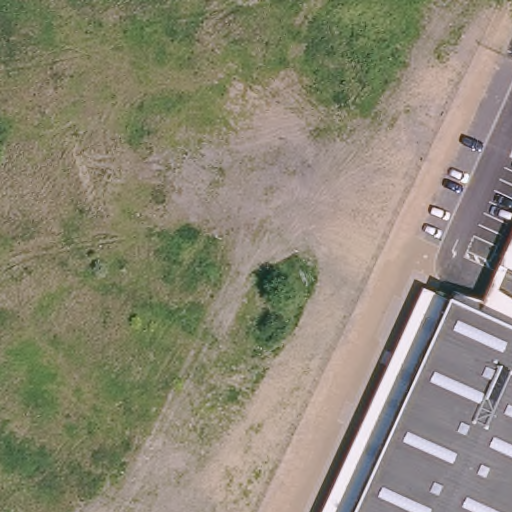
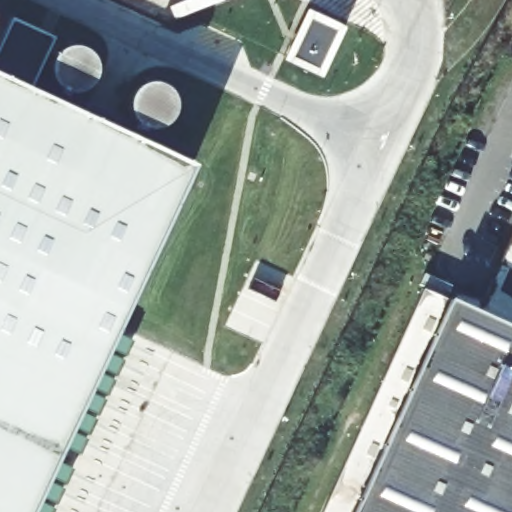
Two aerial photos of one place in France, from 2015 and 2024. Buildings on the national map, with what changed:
new [(51,39),(34,76),(0,61),(0,40),(10,20),(51,39)]
new [(30,512),(0,512),(0,61),(196,153),(192,162),(30,512)]
new [(512,330),(477,314),(512,234),(512,330)]
new [(349,512),(322,512),(421,288),(446,299),(349,512)]
unchanged [(446,299),(512,330),(512,512),(349,512),(446,299)]

